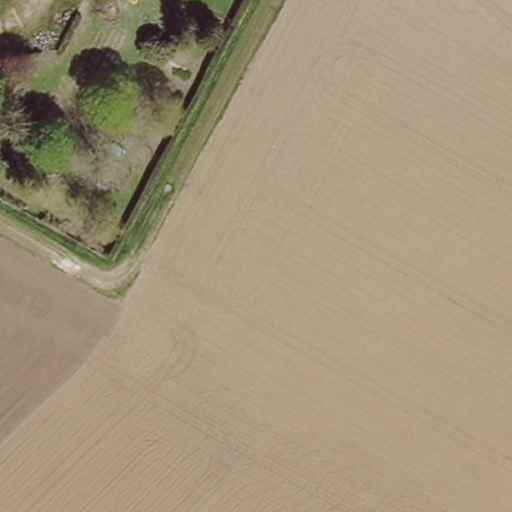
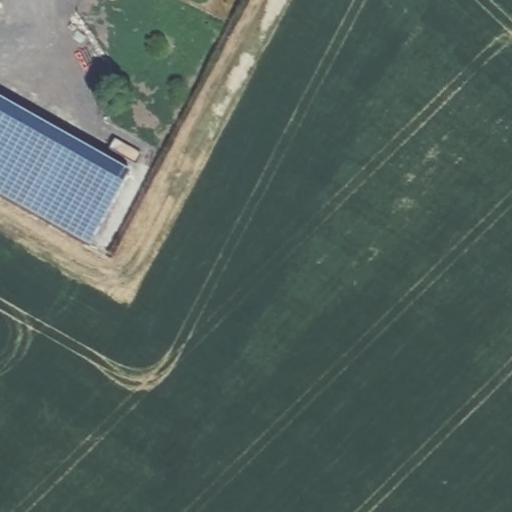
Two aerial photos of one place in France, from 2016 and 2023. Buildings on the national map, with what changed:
new [(90,245),(0,196),(0,101),(130,174),(90,245)]

